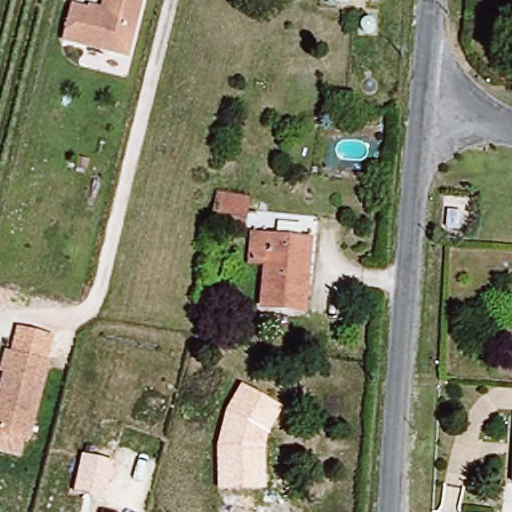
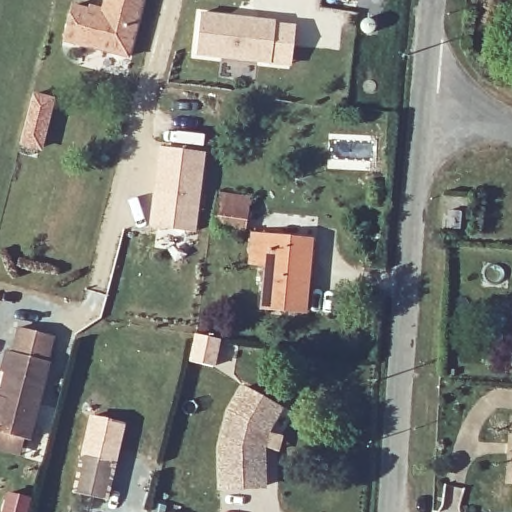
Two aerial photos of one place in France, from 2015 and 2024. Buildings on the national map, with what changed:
unchanged [(103,16),(107,0),(144,0),(130,61),(66,45),(74,9),(103,16)]
new [(201,15),(275,23),(271,62),(198,55),(201,15)]
new [(20,146),(27,111),(34,92),(56,98),(42,151),(29,148),(20,146)]
new [(203,154),(195,233),(152,228),(163,148),(203,154)]
unchanged [(244,198),(244,220),(214,220),(214,198),(244,198)]
unchanged [(297,310),(257,306),(262,264),(245,263),(248,234),(306,242),(297,310)]
unchanged [(11,356),(18,329),(55,340),(47,365),(11,356)]
unchanged [(2,402),(9,377),(5,376),(11,356),(52,367),(31,445),(0,436),(0,401),(2,402)]
unchanged [(269,433),(265,450),(266,490),(218,491),(217,451),(227,413),(241,383),(283,408),(269,433)]
unchanged [(512,483),(506,483),(509,415),(512,415),(512,483)]
new [(75,493),(83,456),(114,462),(106,500),(75,493)]

